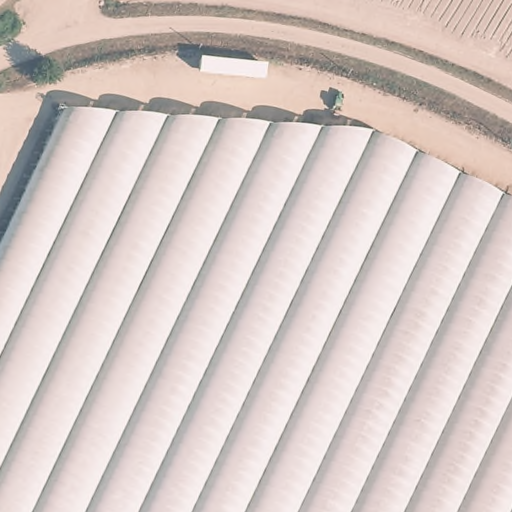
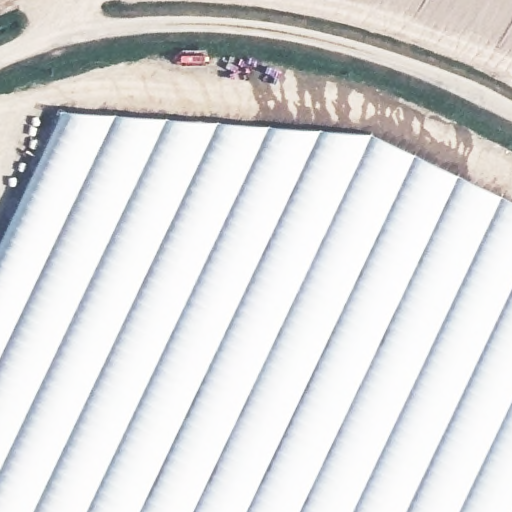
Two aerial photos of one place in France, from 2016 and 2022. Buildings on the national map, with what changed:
unchanged [(370,132),(512,201),(512,512),(0,512),(0,239),(61,110),(370,132)]

